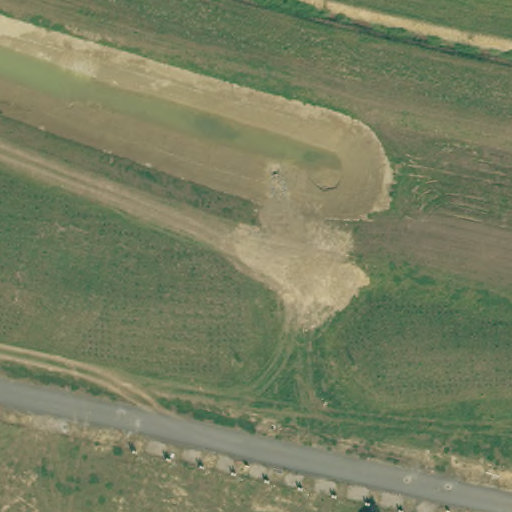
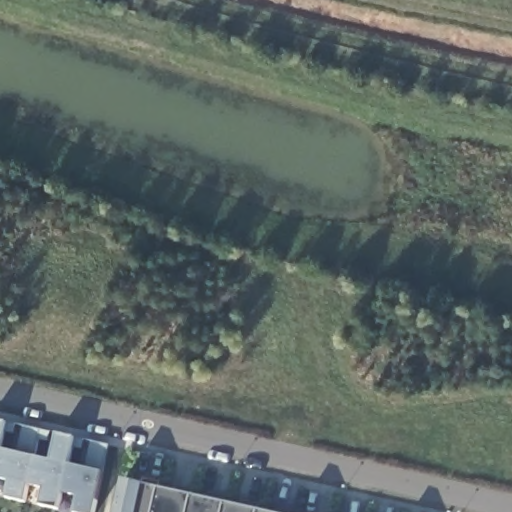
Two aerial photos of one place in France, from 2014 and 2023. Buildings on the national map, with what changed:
new [(7,421),(1,447),(17,451),(23,424),(41,428),(35,455),(51,459),(57,432),(75,436),(69,463),(85,466),(91,440),(109,444),(94,512),(74,512),(78,495),(63,491),(59,508),(40,504),(43,487),(28,484),(25,501),(6,496),(9,479),(0,477),(0,419),(7,421)]
new [(261,512),(117,512),(124,481),(144,486),(261,512)]

